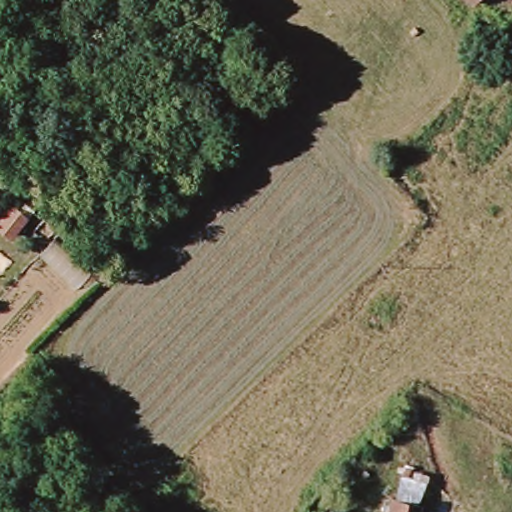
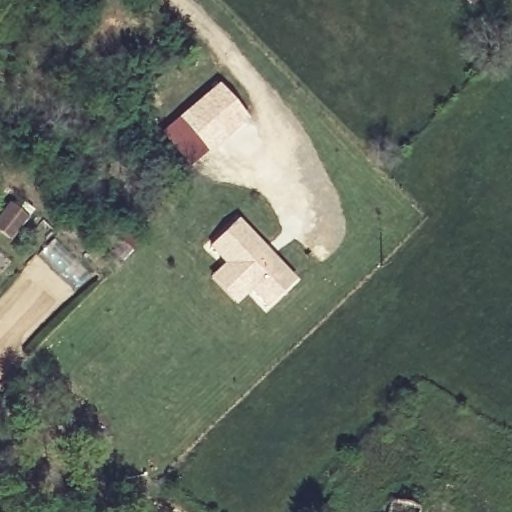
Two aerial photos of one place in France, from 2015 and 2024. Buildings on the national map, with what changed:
unchanged [(467,4),(464,0),(471,0),(467,4)]
new [(248,119),(209,153),(178,116),(219,84),(248,119)]
new [(9,204),(27,217),(10,240),(0,232),(0,214),(9,204)]
new [(238,219),(297,278),(266,307),(250,290),(237,305),(210,277),(223,264),(208,247),(238,219)]
unchanged [(389,493),(391,485),(415,490),(413,498),(389,493)]
unchanged [(387,505),(379,503),(382,491),(389,493),(387,505)]
unchanged [(386,512),(387,505),(417,511),(417,512),(386,512)]

